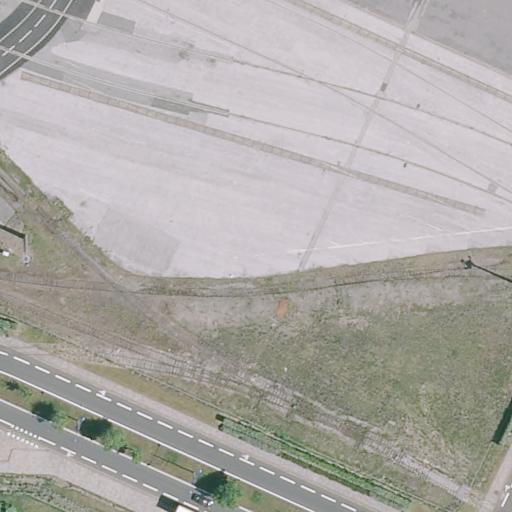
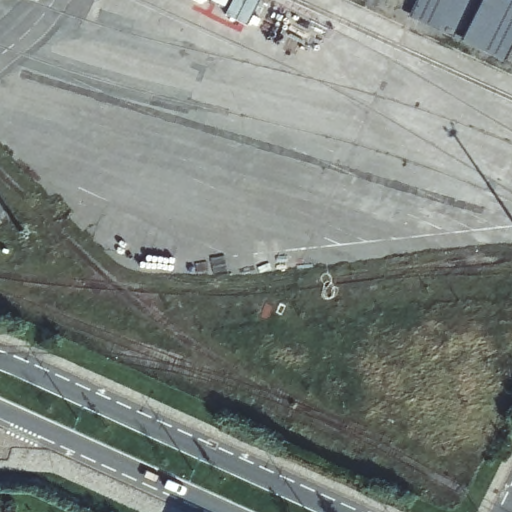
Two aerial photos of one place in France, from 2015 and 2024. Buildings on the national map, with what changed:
new [(337,0),(389,0),(380,20),(337,0)]
new [(409,17),(417,0),(472,0),(454,38),(409,17)]
new [(504,65),(461,44),(481,0),(506,0),(512,3),(512,47),(504,65)]

